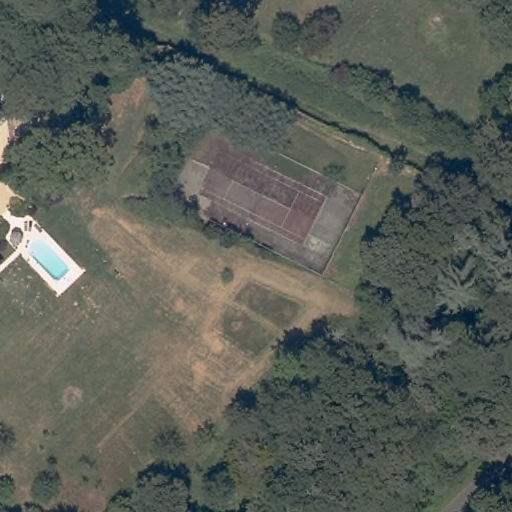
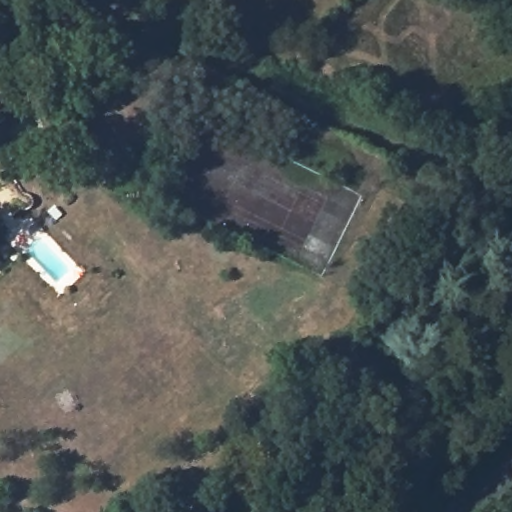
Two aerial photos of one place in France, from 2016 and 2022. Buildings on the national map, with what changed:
unchanged [(0,128),(0,103),(13,117),(0,128)]

